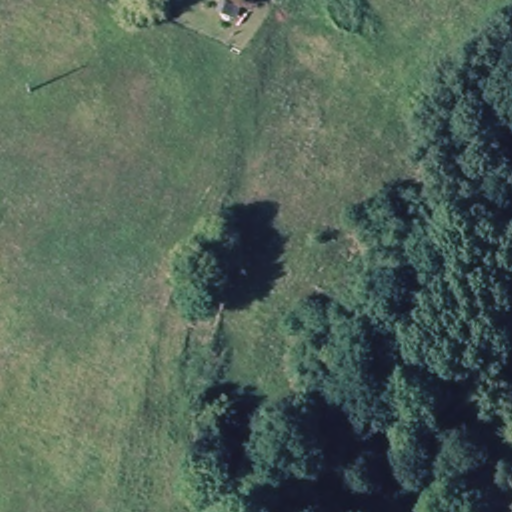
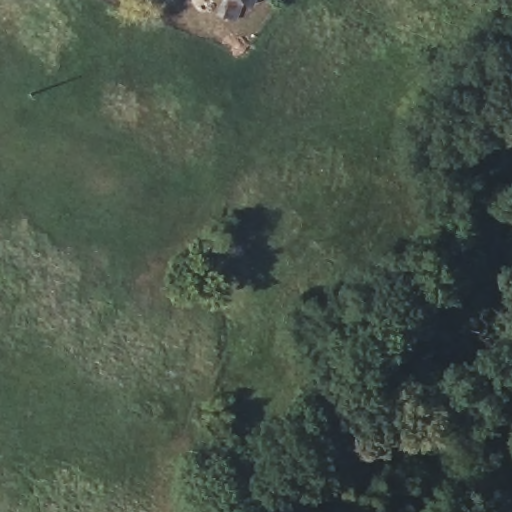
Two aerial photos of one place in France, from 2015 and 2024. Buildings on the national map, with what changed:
unchanged [(237,21),(223,16),(227,0),(245,0),(237,21)]

